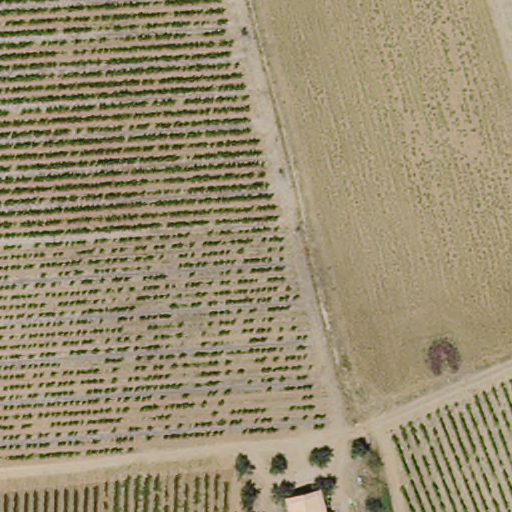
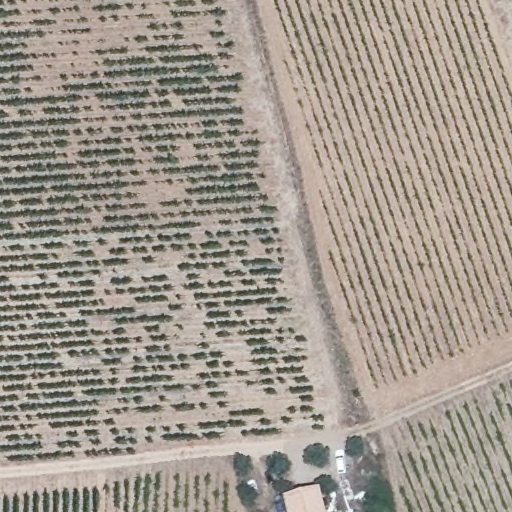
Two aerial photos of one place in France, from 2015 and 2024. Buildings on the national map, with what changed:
unchanged [(321,500),(323,512),(286,512),(286,509),(321,500)]

